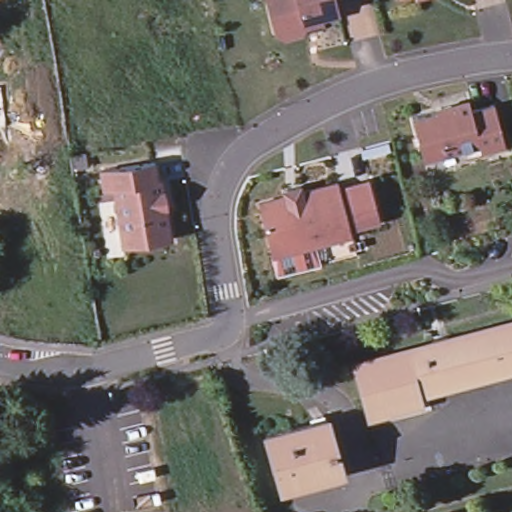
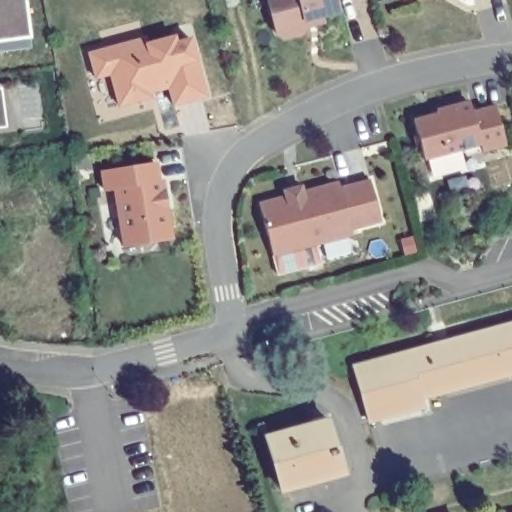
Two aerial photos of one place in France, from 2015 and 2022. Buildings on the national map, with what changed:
unchanged [(334,0),(336,9),(303,18),(305,24),(300,32),(283,36),(275,31),(266,1),(270,0),(334,0)]
new [(172,105),(167,88),(149,94),(150,99),(118,107),(110,75),(95,79),(87,52),(144,37),(145,42),(176,35),(178,42),(192,37),(198,62),(206,99),(172,105)]
new [(6,127),(0,128),(0,87),(1,87),(6,127)]
unchanged [(437,111),(438,114),(443,112),(441,107),(451,105),(452,106),(470,102),(471,109),(495,102),(506,144),(482,150),(480,143),(425,159),(413,118),(437,111)]
unchanged [(123,236),(115,188),(105,190),(102,171),(156,162),(159,180),(163,179),(172,237),(142,242),(125,245),(123,236)]
unchanged [(284,199),(282,193),(300,188),(301,194),(337,185),(338,190),(368,182),(380,222),(350,231),(351,236),(272,258),(257,206),(284,199)]
unchanged [(512,325),(512,375),(421,399),(423,406),(367,421),(353,367),(512,325)]
unchanged [(321,417),(337,467),(277,487),(261,436),(321,417)]

